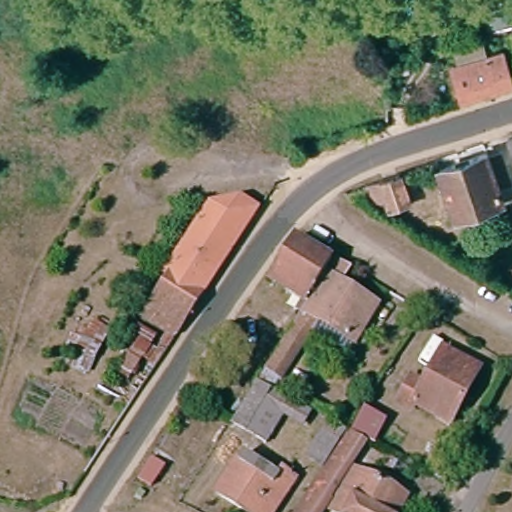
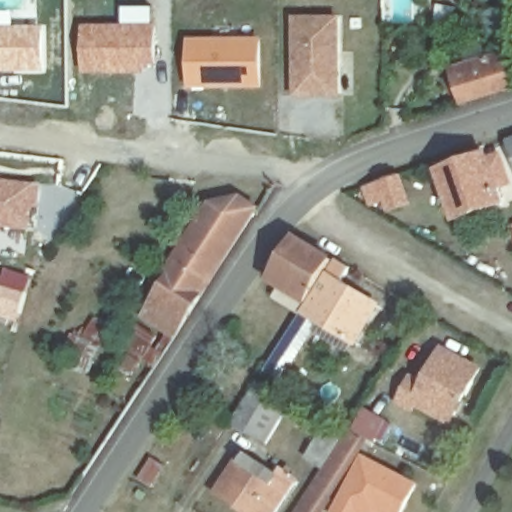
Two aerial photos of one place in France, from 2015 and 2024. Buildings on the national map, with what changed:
new [(77,23),(121,24),(121,5),(153,5),(156,69),(147,69),(147,75),(77,74),(77,23)]
new [(505,5),(511,25),(488,32),(482,12),(505,5)]
new [(13,24),(44,24),(45,72),(7,74),(0,74),(0,10),(12,9),(13,24)]
new [(340,96),(293,95),(293,18),(339,18),(340,96)]
new [(192,81),(192,40),(259,39),(261,83),(192,81)]
unchanged [(512,81),(512,91),(465,105),(455,71),(501,57),(512,81)]
unchanged [(508,135),(512,134),(512,146),(508,135)]
unchanged [(498,150),(507,177),(494,181),(501,200),(458,215),(442,170),(498,150)]
unchanged [(388,209),(386,202),(367,205),(362,184),(404,174),(413,205),(388,209)]
new [(42,184),(40,206),(34,205),(31,228),(0,225),(0,179),(36,184),(42,184)]
unchanged [(182,254),(210,203),(237,199),(255,210),(215,275),(182,254)]
unchanged [(289,240),(324,261),(302,299),(267,278),(289,240)]
unchanged [(179,333),(149,312),(182,254),(215,275),(179,333)]
unchanged [(345,342),(298,314),(332,259),(349,269),(339,287),(367,304),(345,342)]
new [(19,322),(0,316),(0,283),(4,269),(32,276),(19,322)]
unchanged [(292,320),(314,333),(278,389),(257,378),(292,320)]
unchanged [(413,376),(424,384),(447,347),(482,369),(449,422),(419,404),(415,411),(398,400),(413,376)]
unchanged [(317,418),(309,431),(288,419),(273,447),(231,423),(255,384),(317,418)]
unchanged [(387,419),(376,439),(351,428),(364,407),(387,419)]
unchanged [(315,456),(334,424),(351,433),(362,439),(321,512),(302,512),(331,465),(315,456)]
unchanged [(301,476),(279,512),(253,512),(222,494),(240,463),(246,452),(281,472),(285,466),(301,476)]
new [(418,484),(404,512),(333,512),(362,454),(418,484)]
unchanged [(155,493),(140,486),(156,459),(170,469),(155,493)]
demolished [(353,483),(374,494),(380,484),(411,499),(404,512),(339,512),(353,483)]

